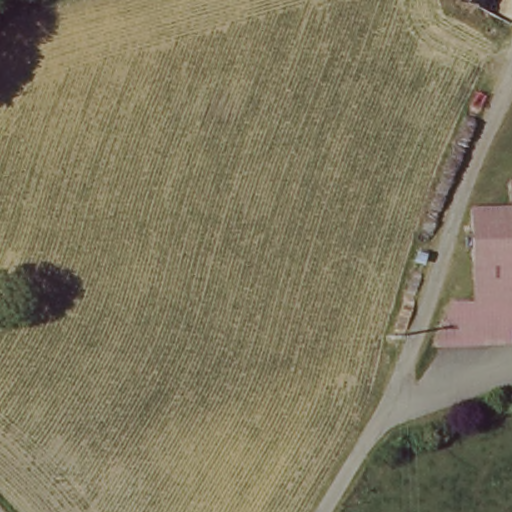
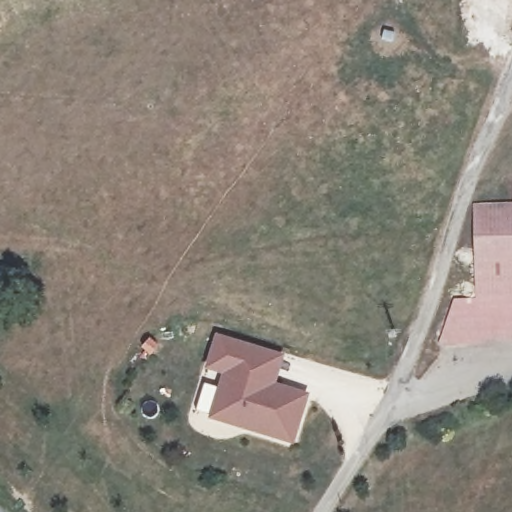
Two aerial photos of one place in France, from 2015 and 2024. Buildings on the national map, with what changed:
unchanged [(479,316),(478,209),(512,209),(512,316),(479,316)]
unchanged [(445,316),(479,316),(512,316),(512,348),(445,348),(445,316)]
new [(241,346),(273,356),(264,385),(297,395),(283,440),(204,416),(218,371),(201,366),(210,336),(241,346)]

